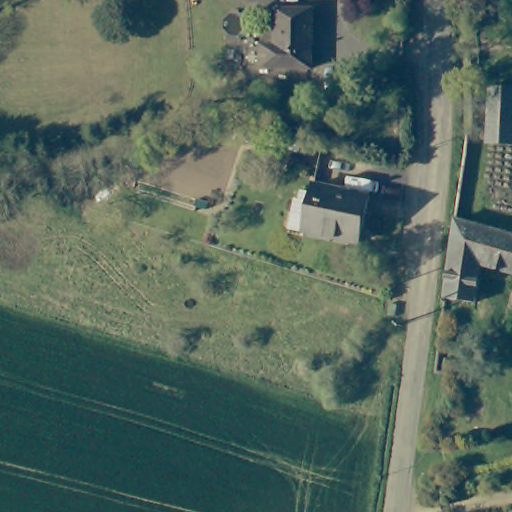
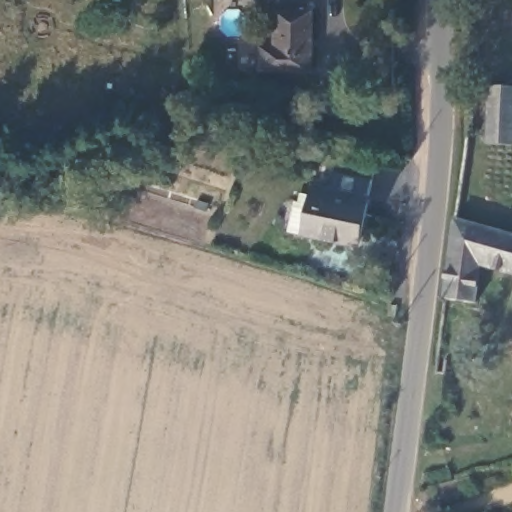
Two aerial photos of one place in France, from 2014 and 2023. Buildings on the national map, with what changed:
unchanged [(274,48),(274,13),(310,14),(309,73),(260,74),(260,49),(274,48)]
unchanged [(484,147),(486,92),(512,92),(512,148),(484,147)]
unchanged [(366,206),(356,249),(304,237),(313,194),(366,206)]
unchanged [(477,275),(472,309),(441,306),(451,230),(512,243),(512,283),(477,275)]

